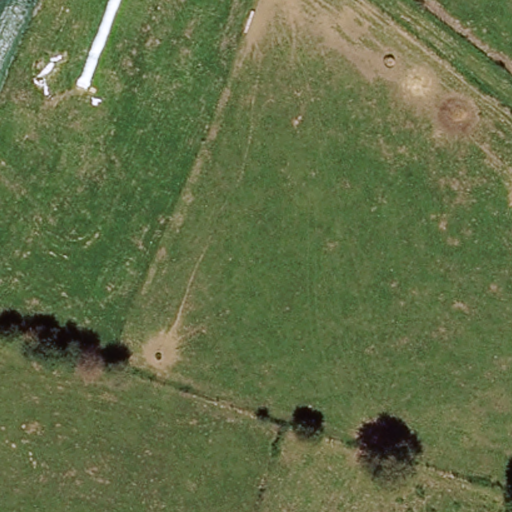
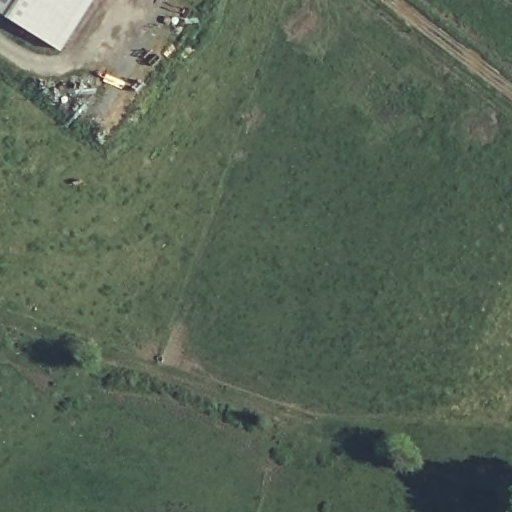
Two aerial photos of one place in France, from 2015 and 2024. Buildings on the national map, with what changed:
new [(0,12),(0,0),(91,0),(60,50),(0,12)]

